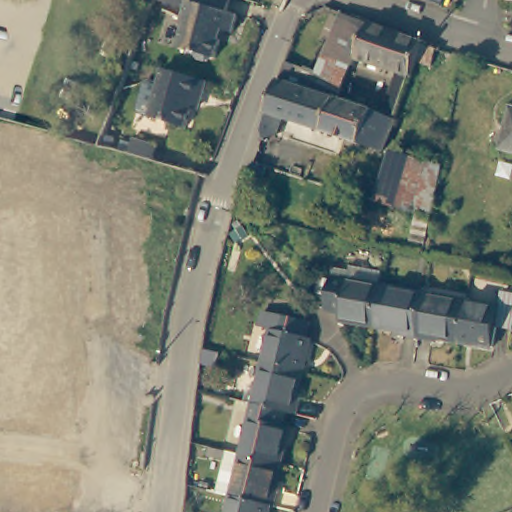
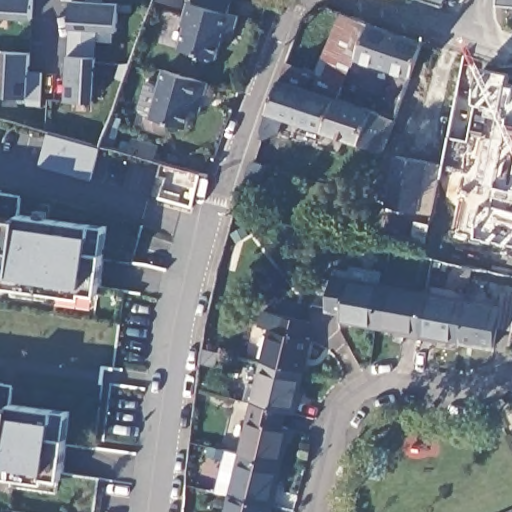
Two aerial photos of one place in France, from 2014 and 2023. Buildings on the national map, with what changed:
new [(30,18),(0,17),(0,0),(31,0),(30,18)]
new [(70,0),(88,0),(132,2),(132,9),(117,8),(116,29),(96,28),(95,41),(67,40),(70,0)]
unchanged [(180,7),(160,0),(182,0),(180,7)]
unchanged [(228,12),(240,16),(234,34),(224,31),(214,58),(211,56),(204,61),(197,58),(192,53),(179,48),(184,29),(182,21),(190,0),(194,3),(195,0),(232,0),(228,12)]
unchanged [(421,0),(443,0),(440,7),(421,0)]
unchanged [(382,114),(395,72),(355,58),(352,65),(323,56),(339,14),(422,42),(395,119),(382,114)]
new [(67,40),(95,41),(92,100),(65,99),(67,40)]
unchanged [(290,49),(322,60),(323,56),(352,65),(338,102),(278,81),(290,49)]
new [(28,52),(27,70),(41,70),(39,104),(25,103),(26,97),(0,96),(0,66),(1,56),(0,56),(0,50),(28,52)]
unchanged [(188,109),(182,127),(147,115),(162,69),(207,83),(201,100),(197,111),(188,109)]
unchanged [(259,134),(278,81),(338,102),(395,121),(383,154),(283,120),(277,137),(260,138),(259,134)]
unchanged [(512,128),(508,127),(512,115),(512,152),(506,151),(512,128)]
new [(97,148),(90,179),(39,167),(47,134),(97,148)]
unchanged [(101,134),(114,138),(111,148),(97,144),(101,134)]
unchanged [(121,140),(129,143),(132,137),(157,144),(152,159),(116,149),(121,140)]
unchanged [(401,204),(388,200),(402,150),(445,163),(442,180),(434,216),(416,209),(401,204)]
demolished [(52,169),(47,181),(52,183),(51,454),(69,455),(69,512),(0,511),(0,454),(4,222),(0,221),(0,155),(52,169)]
unchanged [(246,171),(251,163),(265,167),(261,183),(255,181),(250,218),(233,213),(246,171)]
new [(21,195),(18,215),(90,225),(105,227),(97,295),(84,294),(82,298),(0,287),(0,193),(21,195)]
unchanged [(337,320),(338,313),(323,310),(331,278),(383,288),(375,328),(337,320)]
unchanged [(383,288),(425,297),(415,340),(395,336),(395,332),(375,328),(383,288)]
unchanged [(425,297),(467,305),(459,344),(437,340),(436,344),(415,340),(425,297)]
unchanged [(500,311),(503,297),(512,299),(512,333),(497,329),(492,351),(459,344),(467,305),(500,311)]
unchanged [(265,378),(278,328),(311,337),(307,351),(311,352),(302,387),(265,378)]
unchanged [(283,428),(253,421),(265,378),(302,387),(296,408),(301,409),(296,431),(283,428)]
new [(14,386),(10,405),(50,411),(67,413),(59,480),(45,478),(44,484),(0,478),(0,383),(14,386)]
unchanged [(240,469),(253,421),(283,428),(280,440),(287,443),(278,478),(240,469)]
unchanged [(240,469),(278,478),(272,498),(277,500),(274,512),(233,512),(229,511),(240,469)]
unchanged [(233,512),(229,512),(229,511),(233,512)]

